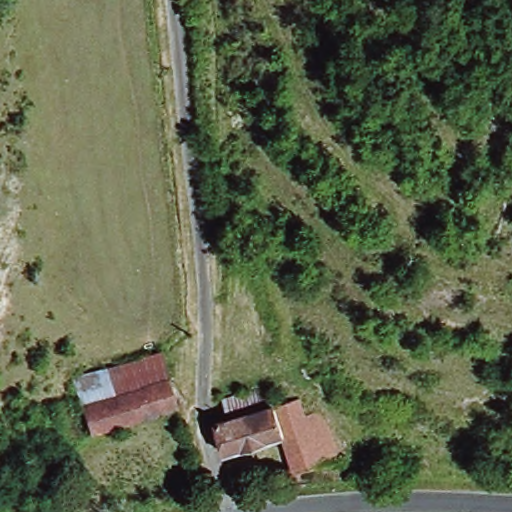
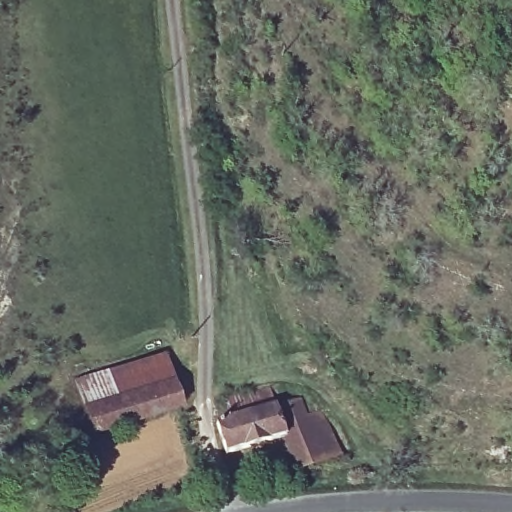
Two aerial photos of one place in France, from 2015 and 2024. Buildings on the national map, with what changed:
unchanged [(81,406),(73,376),(162,352),(172,380),(181,410),(90,438),(81,406)]
unchanged [(270,387),(277,408),(231,422),(225,401),(270,387)]
unchanged [(302,401),(306,414),(321,410),(340,461),(297,476),(283,439),(227,456),(218,425),(231,422),(277,408),(302,401)]

